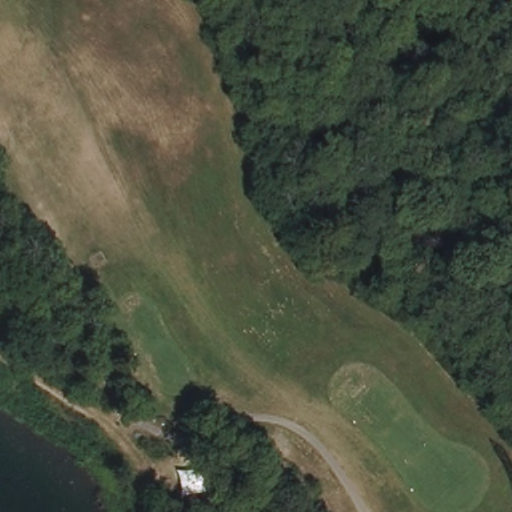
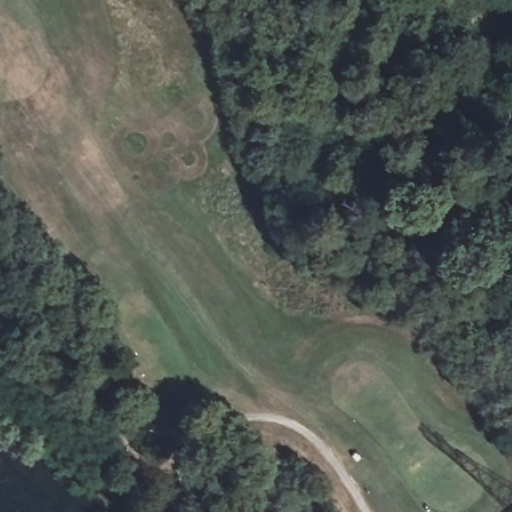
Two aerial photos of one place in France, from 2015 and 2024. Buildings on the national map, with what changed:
[]

